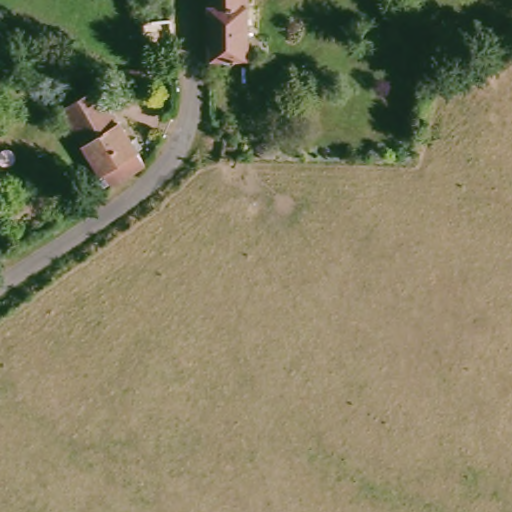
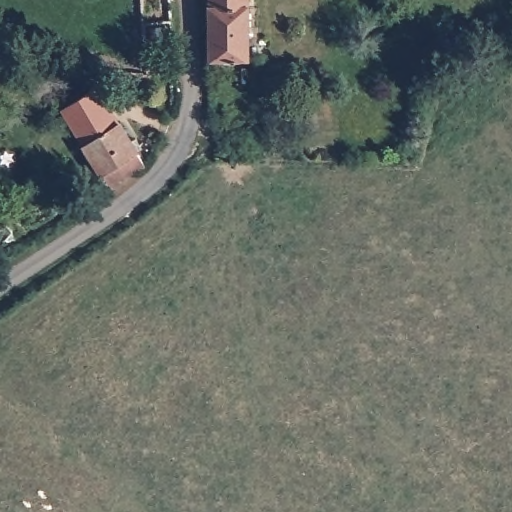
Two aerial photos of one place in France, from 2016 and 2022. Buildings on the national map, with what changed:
unchanged [(212,62),(211,0),(249,0),(250,62),(212,62)]
unchanged [(175,24),(175,35),(143,35),(141,29),(141,24),(175,24)]
unchanged [(94,60),(145,71),(141,82),(123,81),(91,71),(94,60)]
unchanged [(66,110),(103,88),(151,162),(115,187),(66,110)]

